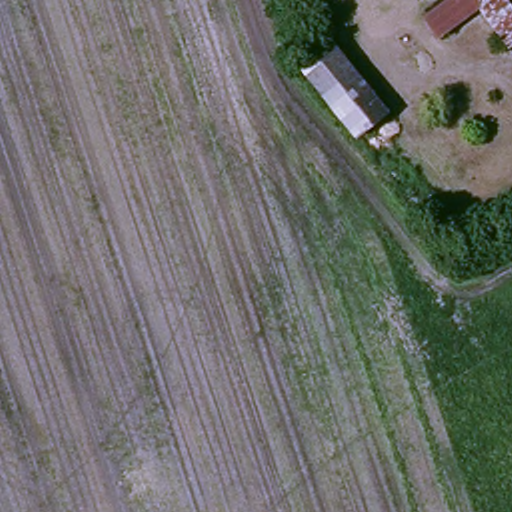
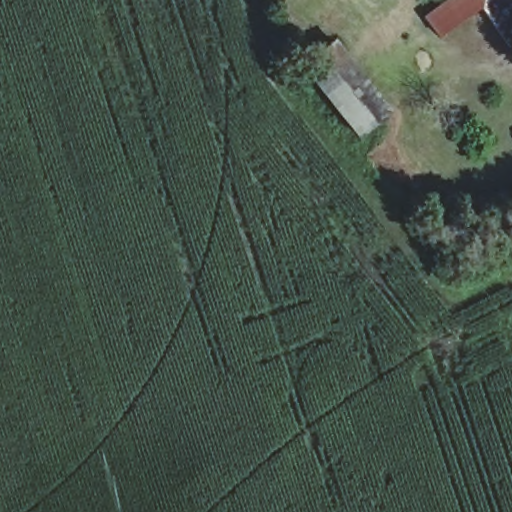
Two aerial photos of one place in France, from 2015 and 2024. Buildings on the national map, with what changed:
unchanged [(421,16),(442,0),(452,0),(453,1),(454,0),(471,0),(477,10),(438,39),(421,16)]
unchanged [(508,0),(512,5),(512,45),(508,48),(477,10),(471,0),(508,0)]
unchanged [(346,51),(405,121),(364,151),(307,77),(346,51)]

